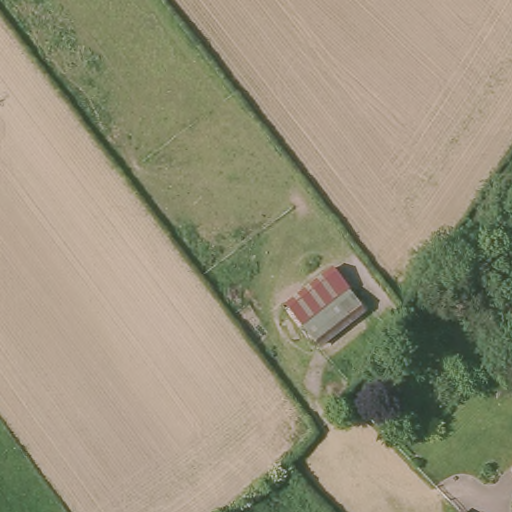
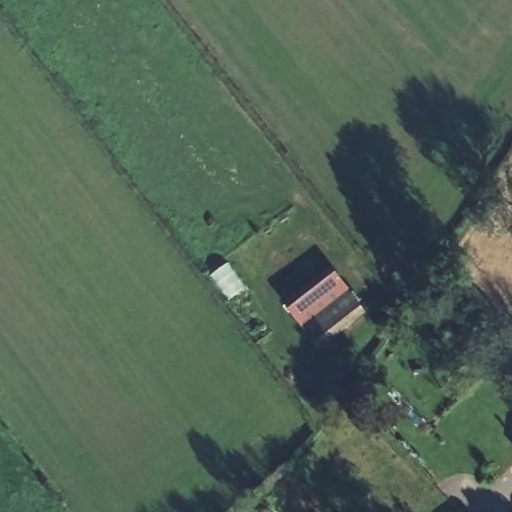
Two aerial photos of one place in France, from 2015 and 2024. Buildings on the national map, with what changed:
unchanged [(334,265),(367,312),(323,348),(286,303),(334,265)]

